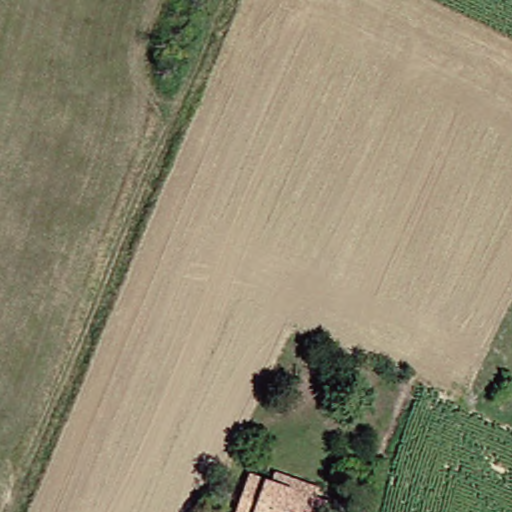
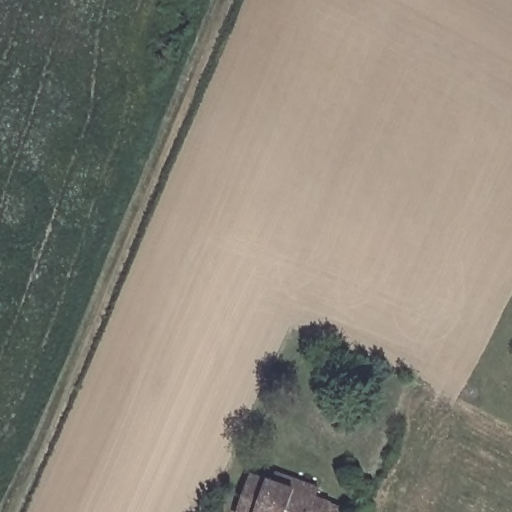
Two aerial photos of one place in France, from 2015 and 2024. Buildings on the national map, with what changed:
unchanged [(225,512),(240,468),(321,497),(333,502),(329,512),(225,512)]

